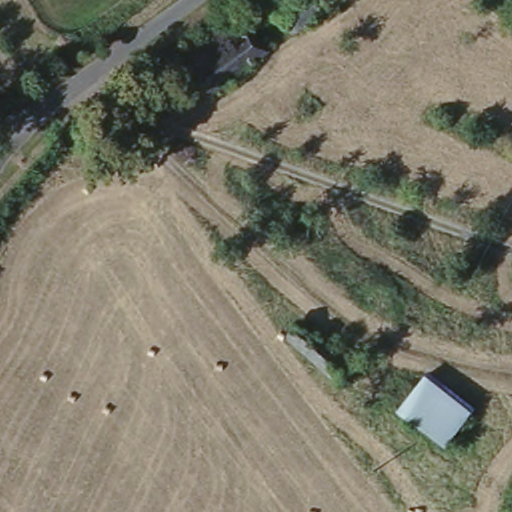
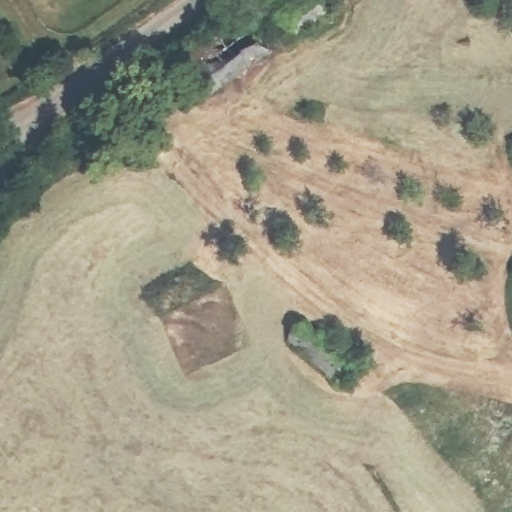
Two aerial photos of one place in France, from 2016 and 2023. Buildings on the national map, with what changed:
unchanged [(336,0),(296,28),(281,7),(291,0),(336,0)]
unchanged [(241,12),(268,57),(206,98),(178,54),(241,12)]
unchanged [(21,65),(21,66),(21,67),(21,68),(20,68),(20,69),(19,69),(19,70),(18,70),(18,71),(17,71),(16,71),(16,72),(15,72),(14,72),(13,72),(12,72),(11,72),(11,71),(10,71),(9,71),(9,70),(8,70),(8,69),(7,69),(7,68),(6,68),(6,67),(6,66),(6,65),(6,64),(6,63),(6,62),(6,61),(7,61),(7,60),(8,59),(9,59),(9,58),(10,58),(11,58),(11,57),(12,57),(13,57),(14,57),(15,57),(16,57),(16,58),(17,58),(18,58),(18,59),(19,59),(20,59),(20,60),(20,61),(21,61),(21,62),(21,63),(21,64),(21,65)]
unchanged [(305,322),(350,363),(338,378),(290,336),(305,322)]
demolished [(395,412),(429,368),(477,409),(443,448),(395,412)]

